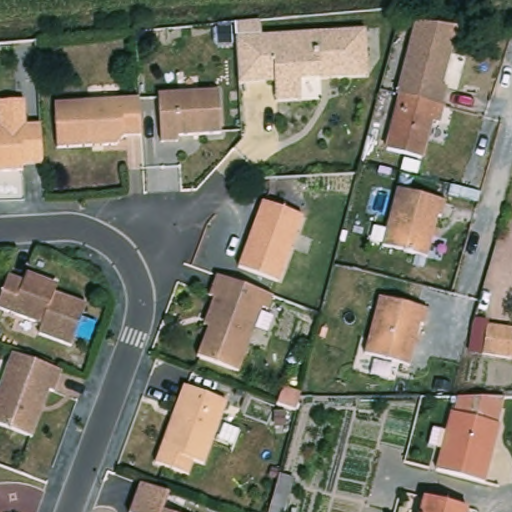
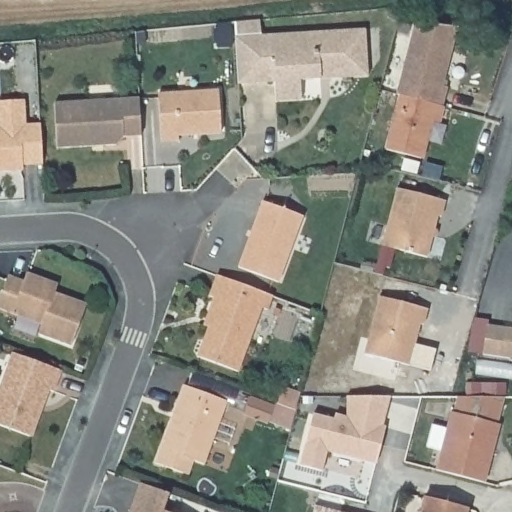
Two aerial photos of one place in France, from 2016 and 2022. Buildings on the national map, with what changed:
unchanged [(275,101),(273,81),(237,82),(235,45),(234,36),(233,21),(248,20),(258,19),(259,35),(364,29),(366,57),(367,76),(350,77),(330,77),(320,78),(299,79),(300,99),(275,101)]
unchanged [(418,19),(454,25),(442,107),(400,96),(418,19)]
unchanged [(220,136),(178,138),(178,143),(161,144),(158,97),(217,93),(220,136)]
unchanged [(442,107),(438,122),(431,121),(421,158),(387,150),(400,96),(442,107)]
unchanged [(20,125),(40,124),(41,145),(41,164),(22,165),(22,170),(0,171),(0,101),(18,100),(20,125)]
unchanged [(140,137),(123,139),(116,147),(56,150),(54,105),(138,100),(140,137)]
unchanged [(444,200),(441,216),(437,215),(427,257),(383,245),(397,188),(444,200)]
unchanged [(301,217),(277,282),(237,267),(262,202),(301,217)]
unchanged [(38,333),(41,324),(0,308),(0,296),(10,271),(25,276),(26,272),(46,280),(44,283),(56,288),(54,292),(86,305),(71,346),(38,333)]
unchanged [(267,311),(261,308),(238,372),(197,357),(208,327),(203,326),(206,317),(213,298),(208,297),(216,276),(272,296),(267,311)]
unchanged [(427,308),(423,324),(420,323),(409,364),(364,352),(379,296),(427,308)]
unchanged [(512,327),(512,359),(482,355),(487,323),(512,327)]
unchanged [(49,390),(31,437),(0,425),(0,385),(12,352),(61,371),(54,391),(49,390)]
unchanged [(204,465),(193,461),(188,475),(155,462),(183,386),(227,402),(204,465)]
unchanged [(300,395),(299,396),(295,411),(292,410),(276,404),(283,387),(300,392),(300,395)]
new [(300,465),(314,414),(334,420),(336,413),(348,416),(348,397),(390,397),(383,426),(387,427),(376,463),(327,451),(323,471),(300,465)]
unchanged [(486,482),(437,469),(453,412),(501,425),(486,482)]
unchanged [(141,482),(174,492),(166,510),(173,512),(129,512),(141,482)]
unchanged [(424,497),(468,508),(467,512),(419,512),(424,497)]

